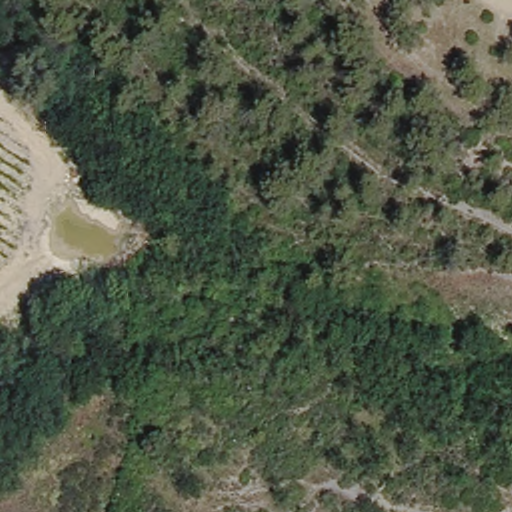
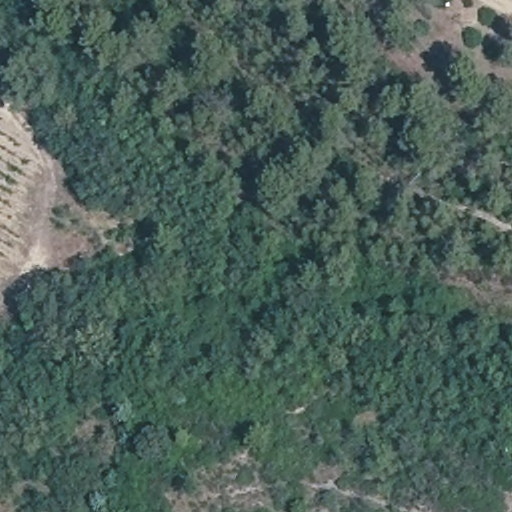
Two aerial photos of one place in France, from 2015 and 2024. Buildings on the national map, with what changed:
[]

